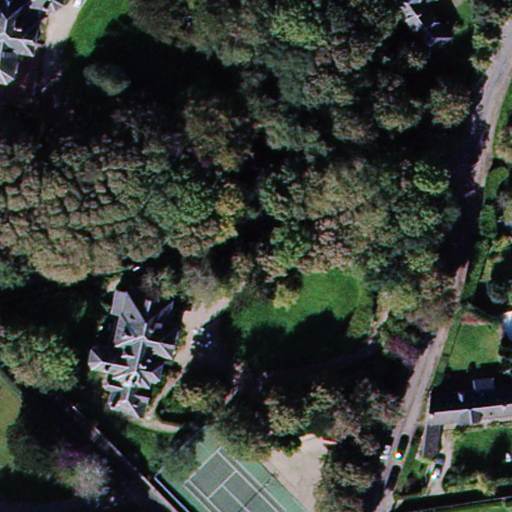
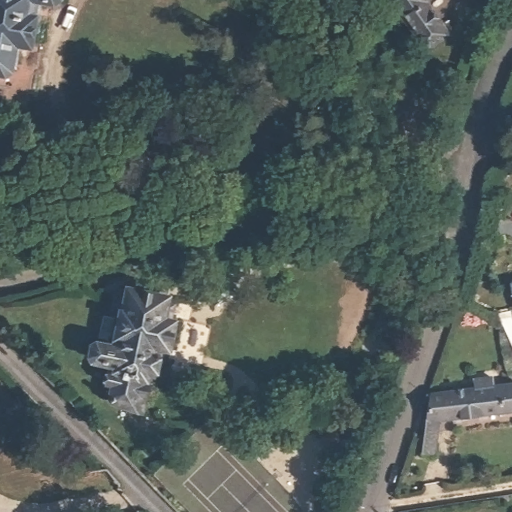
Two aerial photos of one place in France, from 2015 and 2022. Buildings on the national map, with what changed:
unchanged [(26,0),(57,0),(57,1),(50,6),(37,3),(28,48),(14,45),(13,54),(17,54),(14,70),(9,71),(9,76),(3,80),(0,79),(0,0),(26,0)]
unchanged [(425,49),(417,38),(421,36),(394,0),(433,0),(429,3),(452,36),(436,48),(433,50),(425,49)]
unchanged [(132,176),(147,196),(124,213),(109,194),(132,176)]
unchanged [(498,293),(496,283),(512,280),(512,309),(501,311),(498,293)]
unchanged [(111,366),(96,362),(91,357),(94,345),(100,341),(107,343),(109,332),(115,309),(123,311),(129,290),(133,291),(135,283),(169,293),(167,300),(165,304),(173,307),(169,321),(173,322),(166,349),(151,345),(149,354),(155,355),(152,373),(146,372),(145,376),(149,378),(139,412),(112,405),(109,400),(112,387),(107,386),(109,376),(111,366)]
unchanged [(512,317),(512,338),(508,318),(512,317)]
unchanged [(468,381),(485,379),(486,387),(512,384),(512,387),(512,411),(432,422),(429,454),(416,454),(423,395),(469,390),(468,381)]
unchanged [(341,437),(329,447),(320,435),(332,426),(341,437)]

